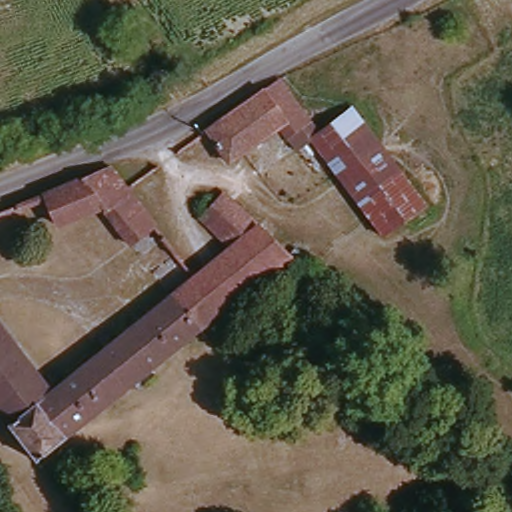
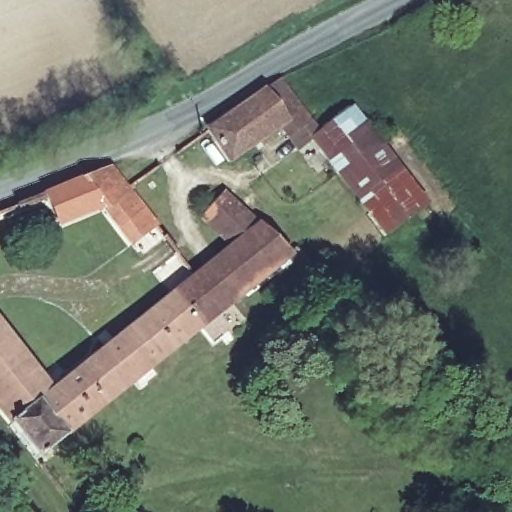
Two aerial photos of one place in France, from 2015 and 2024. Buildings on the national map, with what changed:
unchanged [(315,131),(292,149),(272,121),(226,156),(203,126),(274,76),(315,131)]
unchanged [(348,109),(365,133),(334,155),(315,131),(348,109)]
unchanged [(325,161),(334,155),(365,133),(420,201),(381,233),(325,161)]
unchanged [(156,229),(130,251),(100,212),(57,228),(45,195),(109,167),(156,229)]
unchanged [(300,264),(265,290),(227,247),(204,217),(231,194),(252,212),(265,224),(275,239),(300,264)]
unchanged [(169,292),(197,270),(227,247),(265,290),(207,335),(169,292)]
unchanged [(50,392),(169,292),(207,335),(34,464),(0,420),(0,323),(50,392)]

